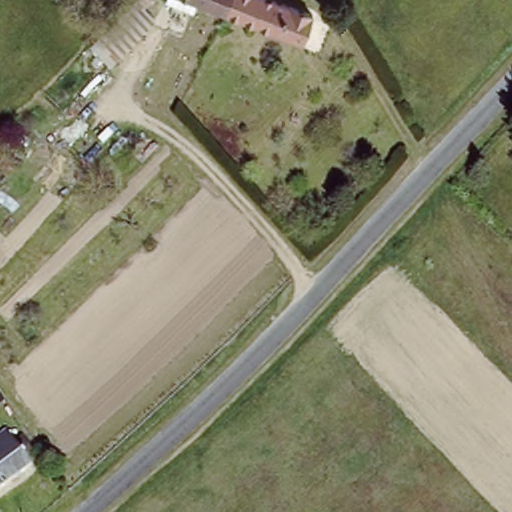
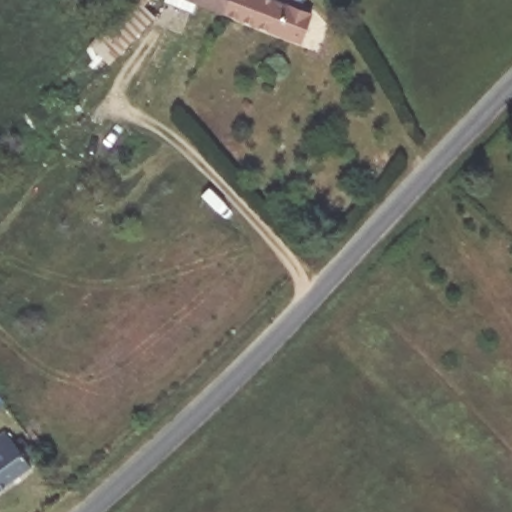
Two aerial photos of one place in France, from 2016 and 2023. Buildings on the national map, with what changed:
unchanged [(130,0),(151,0),(145,7),(155,16),(107,65),(89,46),(130,0)]
unchanged [(177,5),(166,0),(179,0),(177,5)]
unchanged [(216,5),(204,0),(218,0),(216,5)]
unchanged [(218,0),(284,0),(285,2),(316,18),(306,44),(216,5),(218,0)]
unchanged [(0,490),(0,437),(9,430),(35,463),(0,490)]

